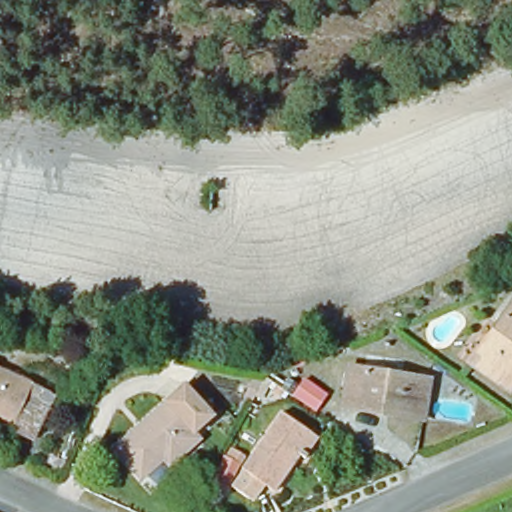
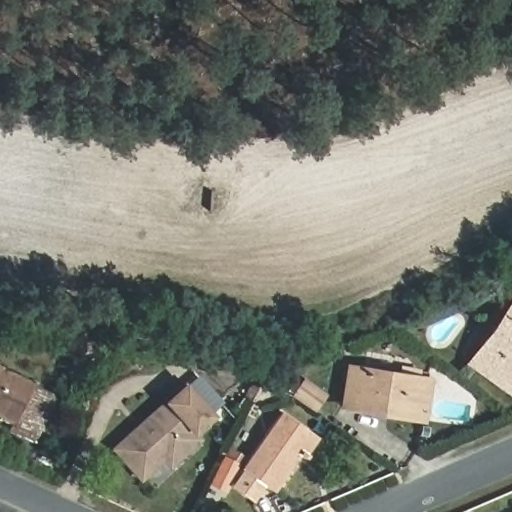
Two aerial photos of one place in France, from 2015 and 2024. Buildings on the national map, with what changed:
unchanged [(502,385),(470,361),(512,306),(512,388),(510,391),(502,385)]
unchanged [(384,417),(338,409),(345,364),(433,379),(427,411),(426,424),(384,417)]
unchanged [(32,433),(0,418),(0,370),(51,395),(32,433)]
unchanged [(166,463),(142,482),(112,447),(192,384),(217,415),(199,430),(207,441),(181,463),(172,470),(166,463)]
unchanged [(320,440),(307,456),(302,452),(274,491),(265,485),(254,501),(231,485),(282,414),(320,440)]

